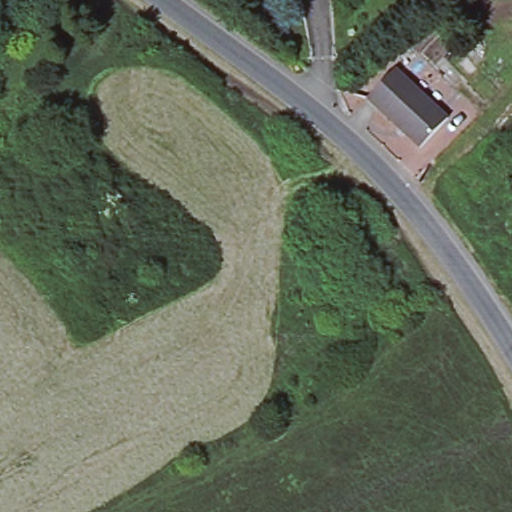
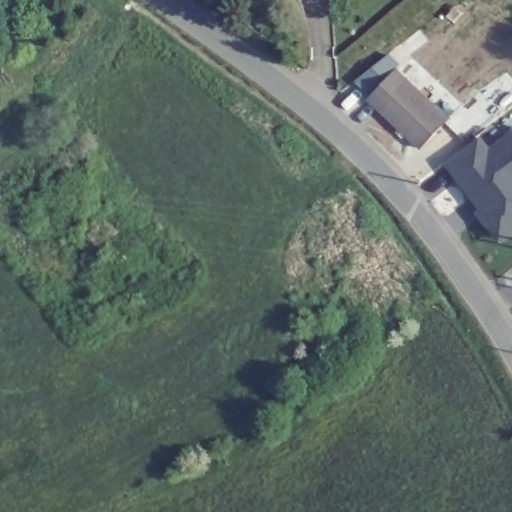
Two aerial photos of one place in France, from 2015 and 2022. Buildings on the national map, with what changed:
unchanged [(369,98),(373,94),(398,69),(449,119),(420,148),(382,111),(369,98)]
new [(498,242),(475,213),(480,209),(444,164),(481,136),(491,146),(512,130),(512,232),(498,242)]

